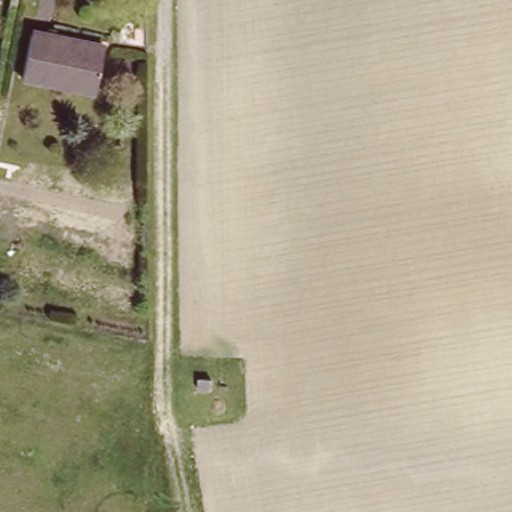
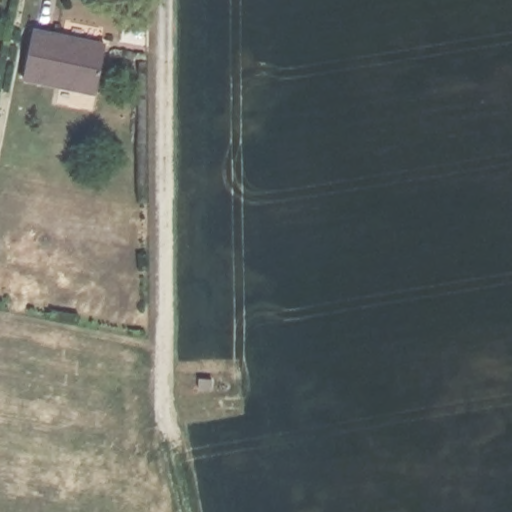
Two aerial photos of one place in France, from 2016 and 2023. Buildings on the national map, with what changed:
unchanged [(34,40),(86,49),(88,39),(105,42),(99,85),(65,79),(63,86),(28,81),(34,40)]

